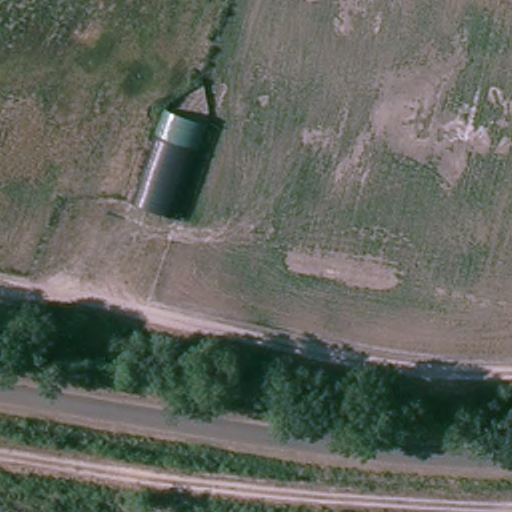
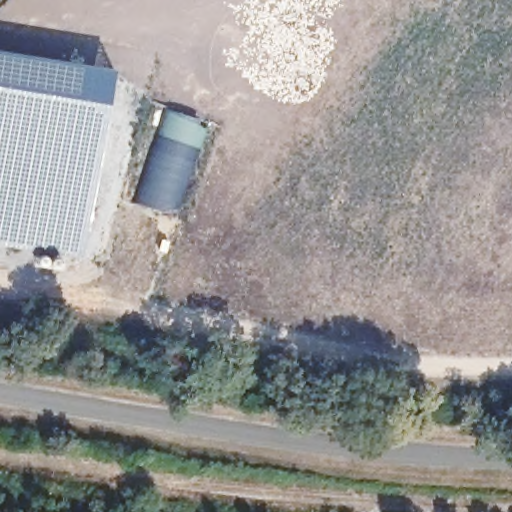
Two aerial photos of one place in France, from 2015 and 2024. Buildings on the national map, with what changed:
new [(82,257),(0,244),(0,49),(112,66),(82,257)]
unchanged [(207,120),(180,216),(134,201),(165,105),(207,120)]

